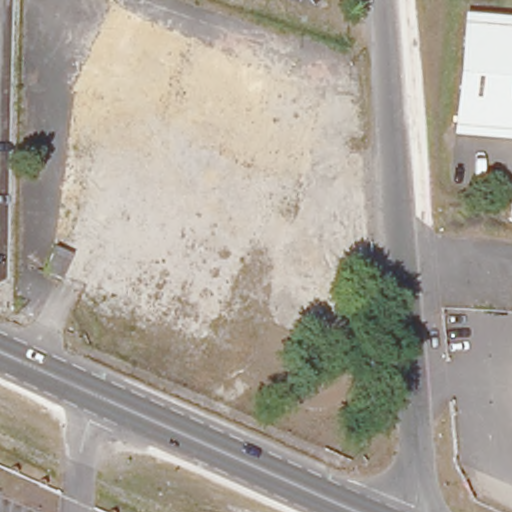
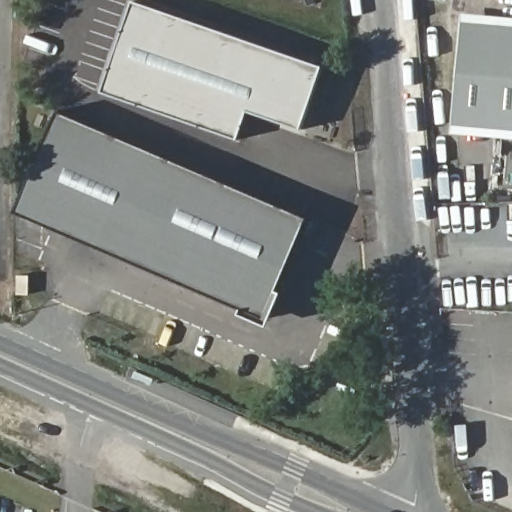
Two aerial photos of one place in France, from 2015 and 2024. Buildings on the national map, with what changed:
new [(249,112),(239,140),(102,92),(133,0),(134,0),(323,66),(300,131),(249,112)]
unchanged [(512,9),(512,19),(465,16),(466,5),(512,9)]
demolished [(108,9),(192,46),(296,90),(190,52),(102,22),(108,9)]
unchanged [(465,16),(512,19),(512,121),(456,116),(465,16)]
demolished [(71,92),(102,22),(190,52),(296,90),(317,99),(281,182),(156,129),(138,121),(71,92)]
new [(15,213),(36,162),(58,110),(310,217),(288,268),(278,291),(283,293),(269,327),(240,315),(242,310),(15,213)]
unchanged [(456,116),(512,121),(512,132),(455,127),(456,116)]
demolished [(281,182),(208,350),(83,294),(156,129),(281,182)]
demolished [(68,262),(61,280),(44,272),(52,252),(68,262)]

